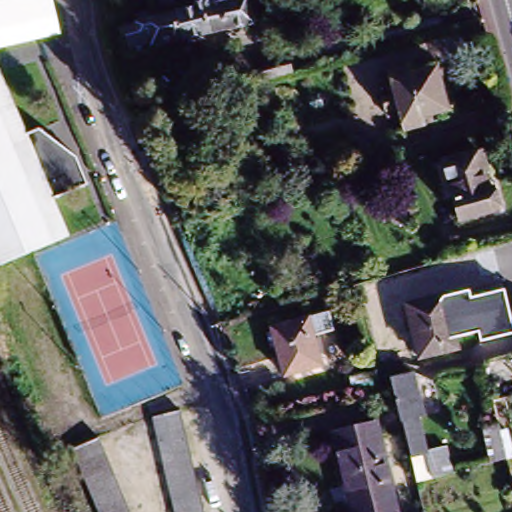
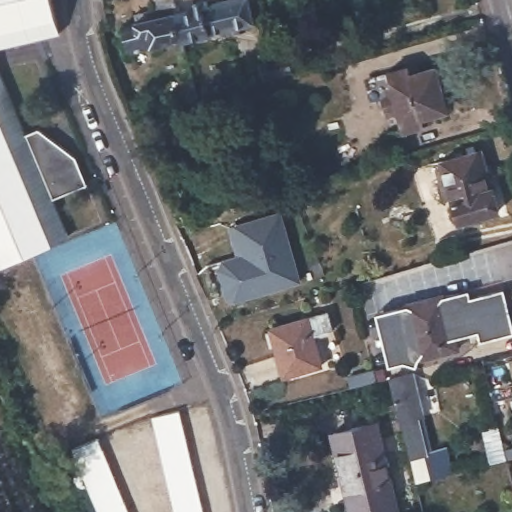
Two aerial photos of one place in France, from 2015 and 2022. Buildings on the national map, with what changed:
unchanged [(47,0),(54,35),(0,47),(0,0),(47,0)]
unchanged [(172,0),(181,0),(181,2),(188,0),(212,0),(214,7),(241,0),(245,0),(251,26),(183,43),(176,17),(172,0)]
unchanged [(129,56),(123,30),(176,17),(183,43),(129,56)]
unchanged [(293,67),(264,74),(261,60),(289,53),(293,67)]
unchanged [(88,179),(62,191),(78,227),(0,261),(0,65),(8,62),(35,127),(50,120),(84,149),(89,160),(95,175),(88,179)]
unchanged [(384,74),(406,68),(408,73),(437,66),(447,113),(425,119),(427,129),(398,136),(384,74)]
unchanged [(437,161),(484,147),(502,213),(456,226),(437,161)]
new [(229,227),(283,211),(303,282),(236,301),(227,297),(218,268),(223,260),(238,256),(229,227)]
unchanged [(471,298),(504,290),(512,324),(512,335),(482,341),(480,332),(457,339),(446,295),(469,291),(471,298)]
unchanged [(413,361),(400,303),(446,292),(459,348),(413,361)]
unchanged [(332,331),(313,334),(321,371),(278,380),(265,328),(329,311),(332,331)]
unchanged [(415,372),(426,418),(419,420),(426,451),(448,446),(453,473),(409,483),(405,458),(387,377),(415,372)]
unchanged [(149,419),(175,411),(178,421),(183,436),(205,512),(176,512),(168,483),(156,441),(149,419)]
unchanged [(398,512),(345,512),(328,431),(378,421),(398,512)]
unchanged [(481,430),(504,424),(511,443),(512,443),(512,463),(488,468),(481,430)]
unchanged [(68,451),(99,438),(129,512),(93,512),(68,451)]

